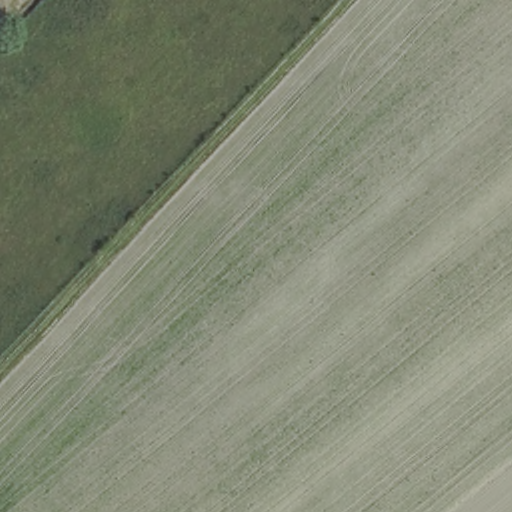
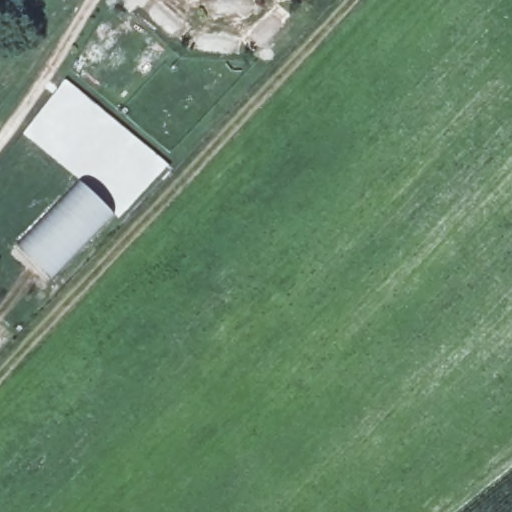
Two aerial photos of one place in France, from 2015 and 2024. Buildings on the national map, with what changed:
new [(51,277),(17,244),(80,180),(113,214),(51,277)]

